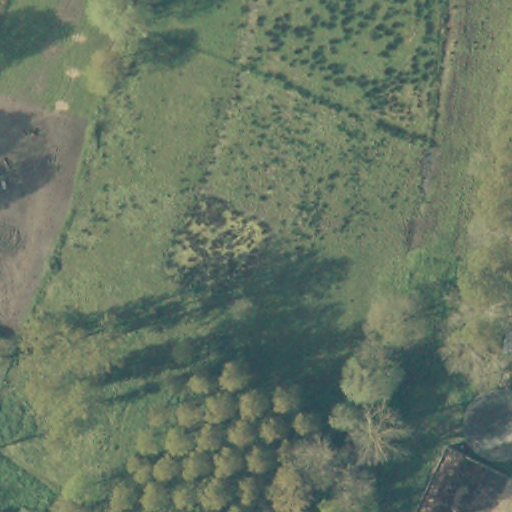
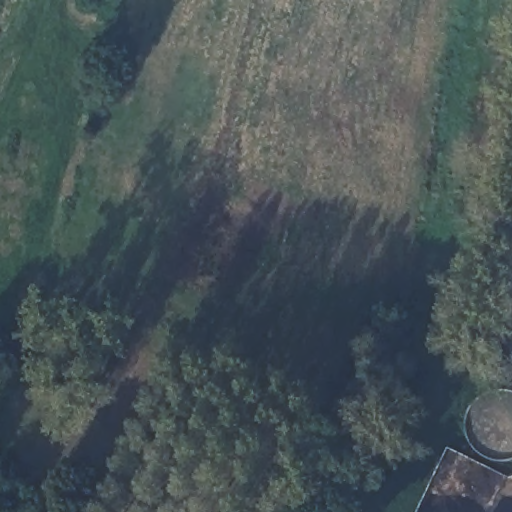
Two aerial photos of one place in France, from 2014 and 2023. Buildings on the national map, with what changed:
[]

